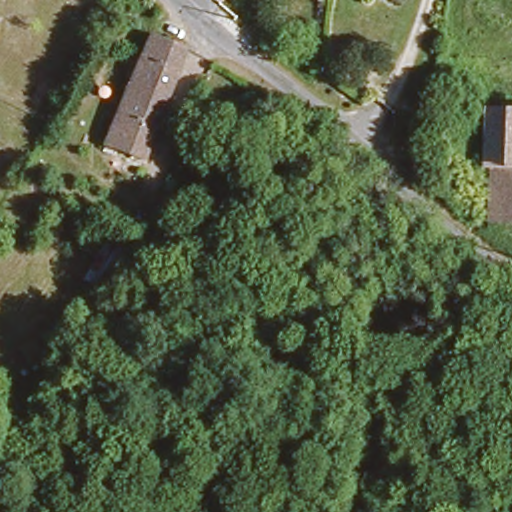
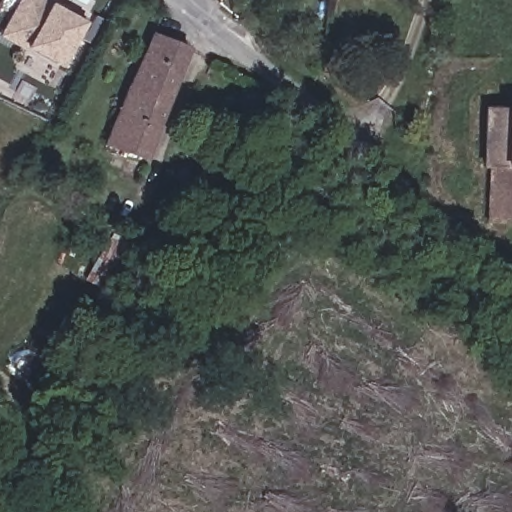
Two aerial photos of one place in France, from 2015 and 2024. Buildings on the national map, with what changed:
new [(31,51),(5,36),(26,0),(44,0),(56,7),(54,10),(69,18),(73,11),(90,21),(68,61),(64,68),(32,50),(31,51)]
unchanged [(147,20),(181,34),(134,161),(97,145),(147,20)]
unchanged [(487,163),(481,163),(484,100),(512,101),(512,216),(485,215),(487,163)]
unchanged [(97,278),(109,253),(88,243),(98,224),(141,245),(121,289),(97,278)]

